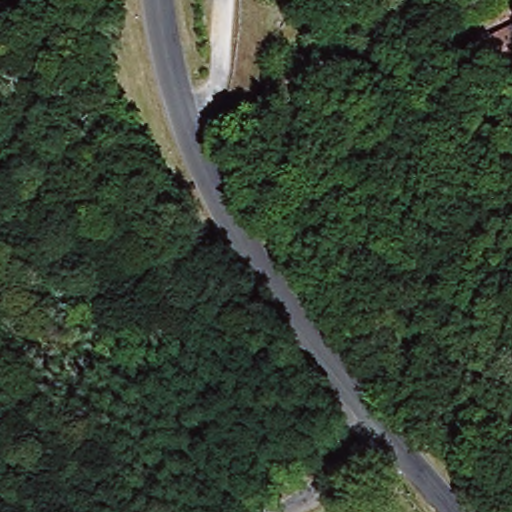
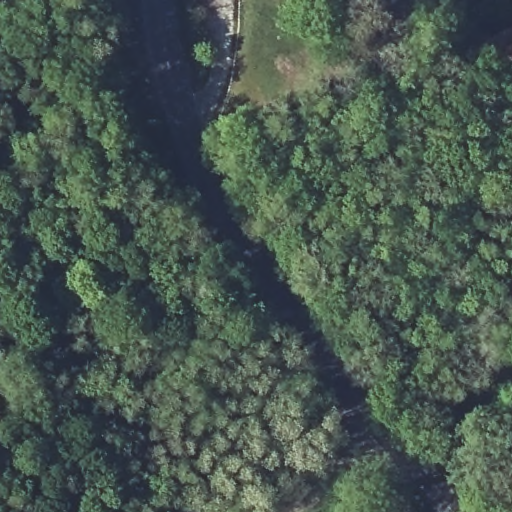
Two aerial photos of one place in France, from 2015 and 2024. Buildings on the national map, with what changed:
unchanged [(470,46),(512,26),(512,55),(482,70),(470,46)]

